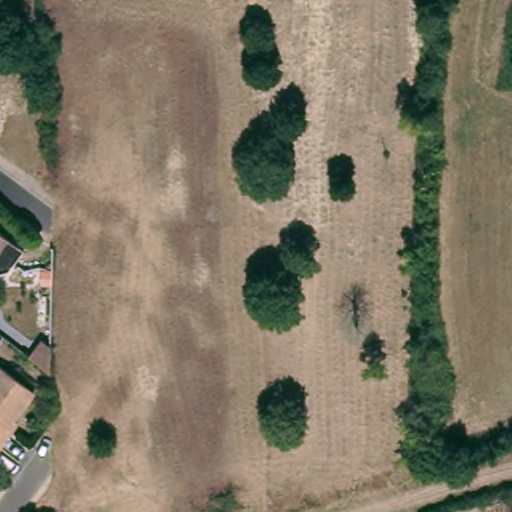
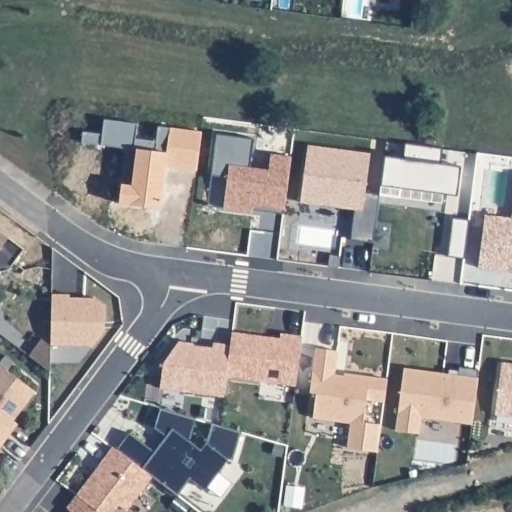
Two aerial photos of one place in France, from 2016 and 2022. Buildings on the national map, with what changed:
new [(216,133),(254,138),(250,168),(269,170),(271,153),(291,156),(285,211),(252,209),(252,211),(208,206),(216,133)]
new [(301,201),(308,144),(370,153),(366,193),(379,194),(373,241),(352,238),(355,209),(301,201)]
new [(485,214),(512,218),(510,230),(483,227),(485,214)]
new [(478,267),(483,227),(510,230),(512,216),(512,265),(503,264),(512,265),(512,271),(503,270),(478,267)]
unchanged [(24,250),(9,271),(0,273),(0,231),(24,250)]
new [(52,292),(70,293),(70,296),(96,296),(104,304),(102,334),(91,346),(50,343),(52,292)]
new [(226,376),(230,344),(232,331),(280,337),(281,332),(302,335),(294,384),(226,376)]
demolished [(28,355),(41,337),(50,343),(49,371),(28,355)]
new [(41,337),(50,343),(49,371),(28,355),(41,337)]
new [(159,387),(163,364),(178,341),(230,344),(226,376),(223,397),(159,387)]
new [(316,393),(309,392),(315,347),(338,350),(335,374),(343,374),(344,372),(388,378),(385,401),(366,398),(364,422),(381,424),(378,451),(348,448),(351,422),(314,418),(316,393)]
new [(512,362),(512,416),(495,414),(502,361),(512,362)]
unchanged [(11,433),(0,447),(0,446),(0,364),(34,390),(11,421),(16,426),(11,433)]
new [(448,374),(448,370),(458,371),(459,367),(479,369),(471,424),(421,417),(419,433),(396,430),(403,368),(448,374)]
new [(192,477),(178,494),(152,474),(116,448),(129,431),(156,450),(166,434),(155,426),(160,406),(243,430),(233,459),(228,458),(206,487),(192,477)]
new [(67,506),(113,446),(116,448),(152,474),(127,509),(120,504),(114,512),(70,512),(72,510),(67,506)]

